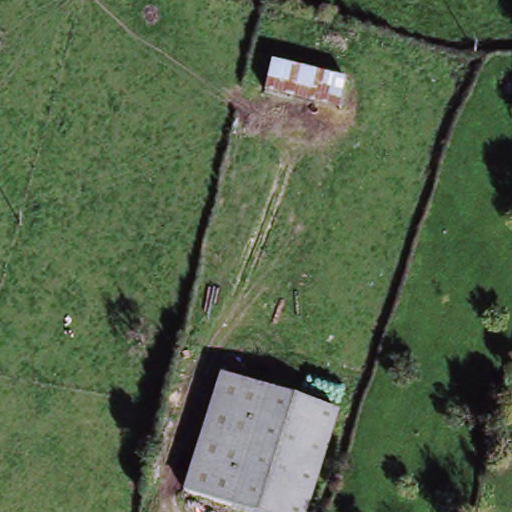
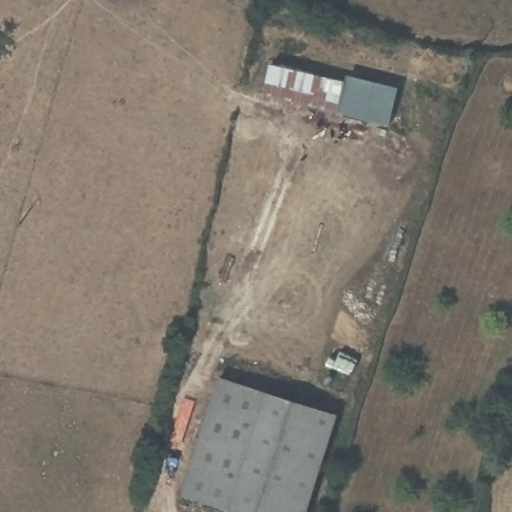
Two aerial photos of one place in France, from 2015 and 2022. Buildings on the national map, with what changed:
unchanged [(269,62),(342,79),(335,109),(262,91),(269,62)]
new [(347,80),(348,75),(400,87),(391,126),(335,112),(335,109),(342,79),(347,80)]
unchanged [(220,371),(337,415),(302,512),(250,512),(178,486),(220,371)]

